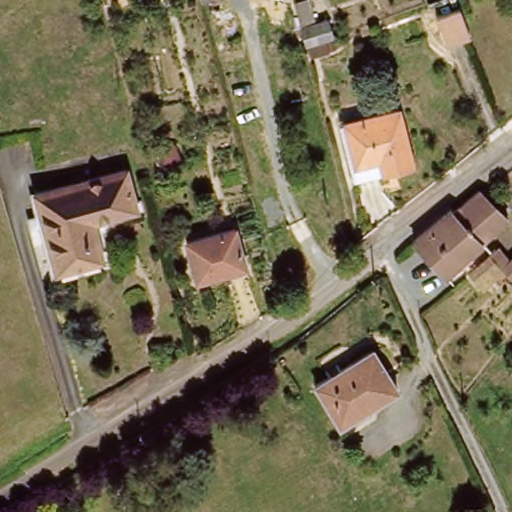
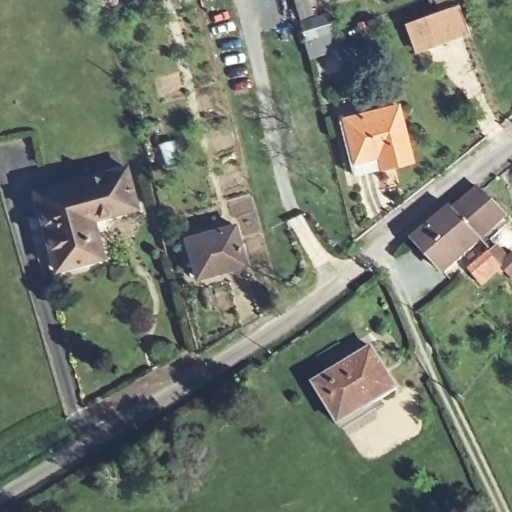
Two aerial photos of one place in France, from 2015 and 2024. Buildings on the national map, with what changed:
demolished [(460,3),(471,30),(450,38),(439,11),(460,3)]
new [(448,6),(459,33),(411,55),(400,23),(448,6)]
unchanged [(328,31),(302,40),(297,21),(322,14),(328,31)]
unchanged [(358,175),(342,121),(387,106),(405,160),(358,175)]
unchanged [(59,265),(38,189),(50,185),(122,167),(133,204),(90,217),(100,254),(71,262),(59,265)]
unchanged [(480,202),(499,225),(475,245),(449,214),(473,193),(480,202)]
unchanged [(440,275),(411,240),(445,210),(449,214),(475,245),(440,275)]
unchanged [(247,264),(200,277),(188,238),(235,225),(247,264)]
unchanged [(491,253),(499,246),(510,260),(512,259),(512,277),(505,268),(482,287),(470,272),(491,253)]
unchanged [(375,348),(398,389),(340,422),(316,382),(375,348)]

